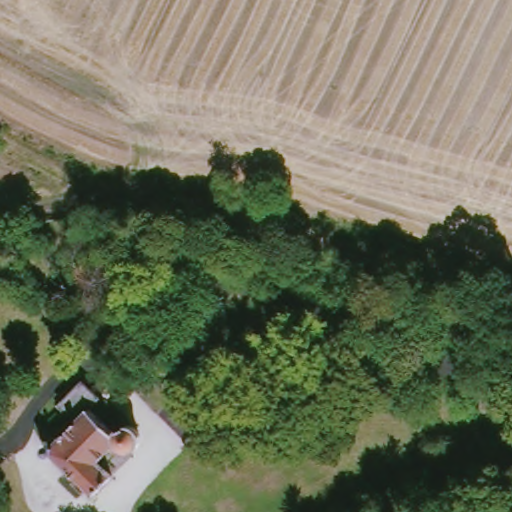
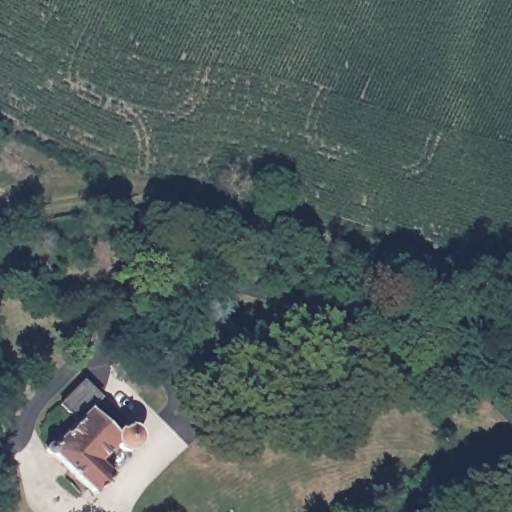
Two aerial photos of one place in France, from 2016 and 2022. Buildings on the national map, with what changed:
unchanged [(108,400),(98,409),(122,429),(130,423),(136,423),(143,427),(147,433),(146,442),(143,447),(135,449),(129,448),(124,445),(105,460),(120,477),(102,493),(58,449),(85,422),(70,406),(93,384),(108,400)]

